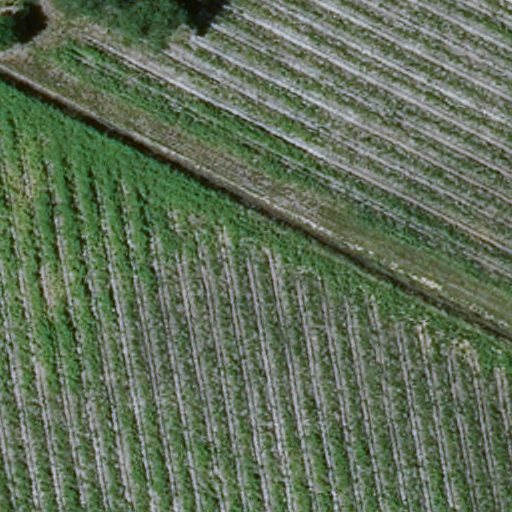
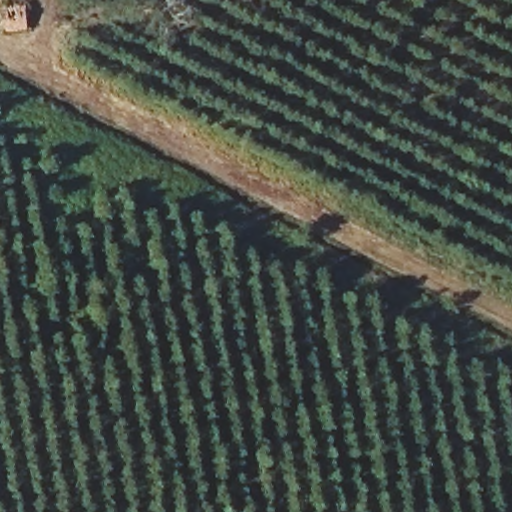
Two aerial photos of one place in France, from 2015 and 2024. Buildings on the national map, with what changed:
unchanged [(25,30),(1,30),(0,2),(26,4),(25,30)]

